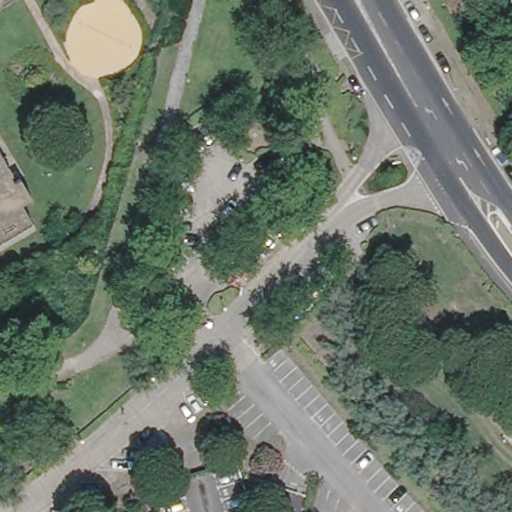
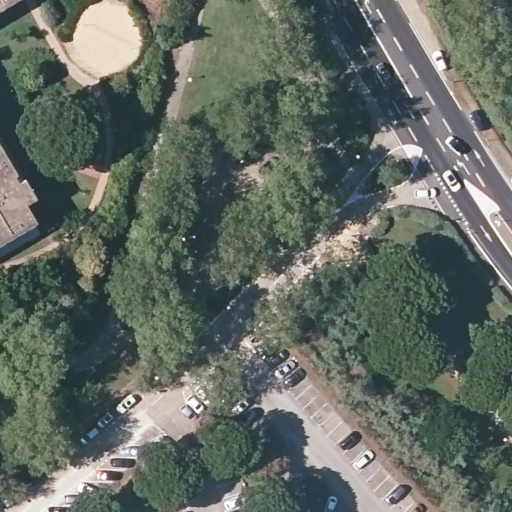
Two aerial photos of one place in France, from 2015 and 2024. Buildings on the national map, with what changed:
unchanged [(22,0),(10,8),(0,13),(0,0),(22,0)]
unchanged [(16,178),(14,179),(18,186),(24,184),(34,202),(26,207),(36,225),(0,246),(0,152),(16,178)]

